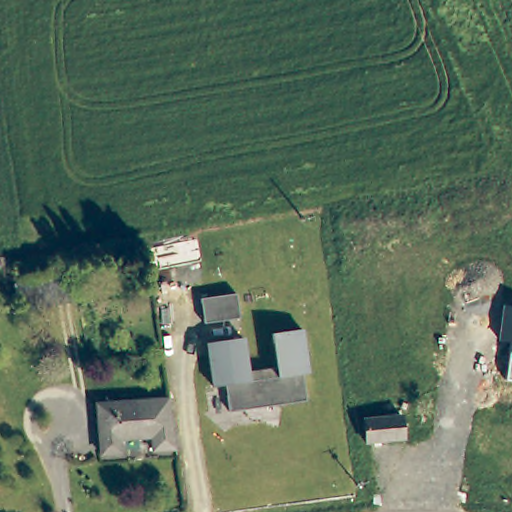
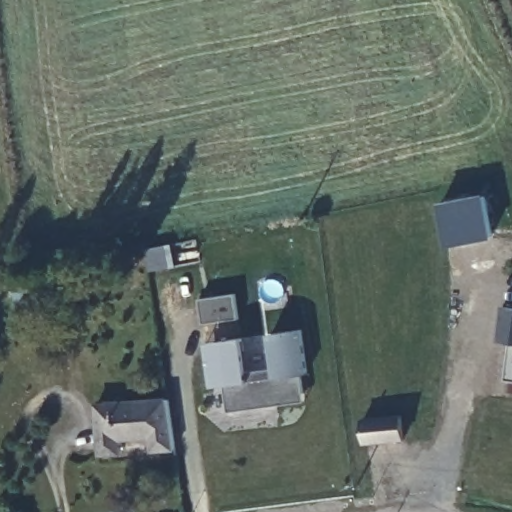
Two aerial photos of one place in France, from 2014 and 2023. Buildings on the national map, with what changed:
new [(448,246),(436,201),(485,194),(494,236),(448,246)]
unchanged [(64,303),(9,313),(4,285),(60,275),(64,303)]
unchanged [(240,318),(205,324),(201,299),(235,294),(240,318)]
unchanged [(503,306),(512,307),(512,380),(506,379),(512,340),(497,339),(503,306)]
unchanged [(275,406),(233,412),(228,386),(215,387),(210,355),(224,353),(222,341),(244,338),(249,372),(279,367),(273,334),(302,330),(310,374),(304,375),(308,394),(309,402),(275,406)]
unchanged [(166,399),(173,449),(149,450),(149,438),(124,439),(124,452),(98,454),(95,404),(166,399)]
unchanged [(399,416),(402,438),(366,441),(363,418),(399,416)]

